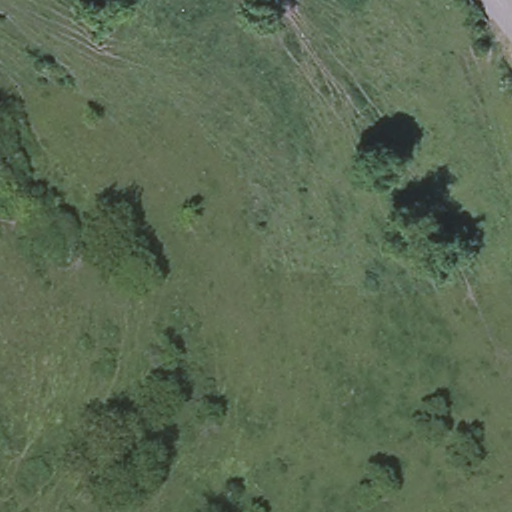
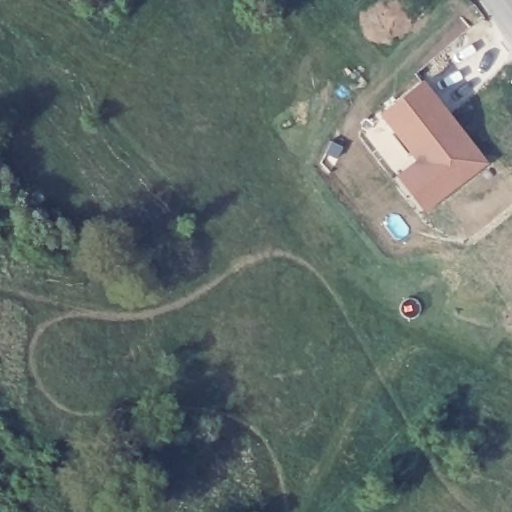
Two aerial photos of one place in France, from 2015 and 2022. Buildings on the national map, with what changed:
new [(488,162),(425,212),(396,176),(416,159),(378,114),(424,79),(488,162)]

